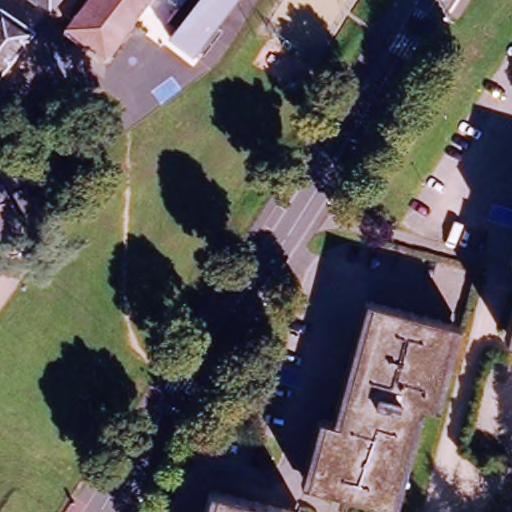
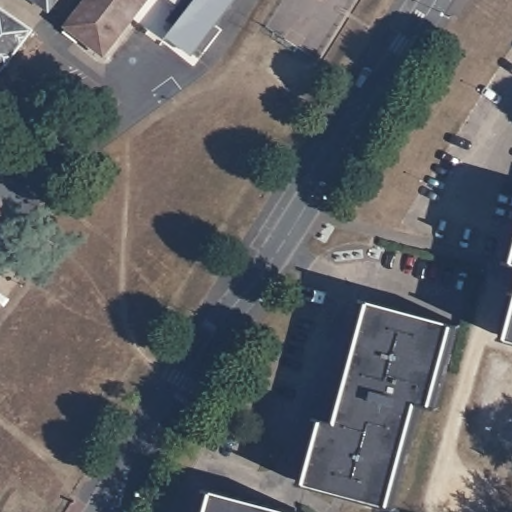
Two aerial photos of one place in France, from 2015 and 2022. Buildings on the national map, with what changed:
unchanged [(50,11),(45,7),(44,9),(32,0),(58,0),(50,11)]
unchanged [(102,55),(66,27),(87,0),(144,0),(102,55)]
unchanged [(215,24),(222,29),(203,53),(197,48),(192,54),(167,35),(175,26),(167,20),(182,0),(234,0),(215,24)]
unchanged [(27,34),(3,68),(0,72),(0,14),(27,34)]
unchanged [(322,416),(335,419),(370,298),(453,322),(431,400),(423,399),(392,503),(305,478),(322,416)]
unchanged [(512,332),(508,331),(512,317),(512,332)]
unchanged [(298,512),(215,512),(221,490),(298,512)]

